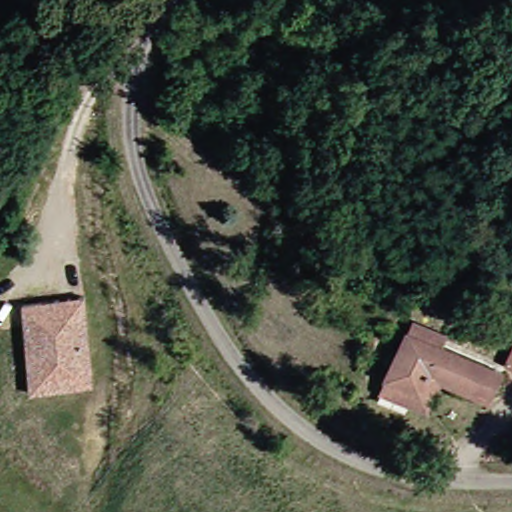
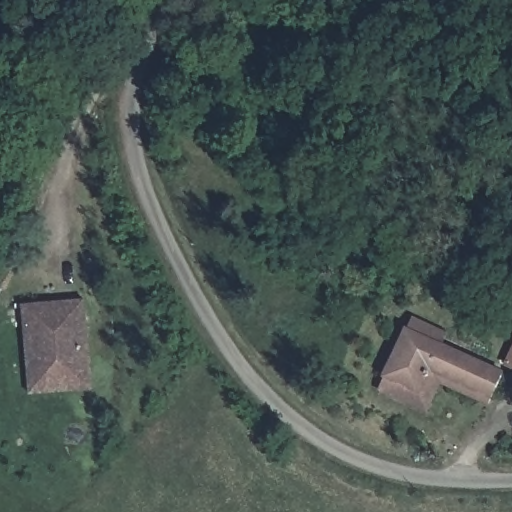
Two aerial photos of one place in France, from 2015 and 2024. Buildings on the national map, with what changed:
unchanged [(90,390),(30,395),(23,305),(83,296),(90,390)]
unchanged [(423,313),(457,328),(452,340),(512,370),(512,386),(508,393),(446,367),(435,389),(398,371),(418,327),(423,313)]
unchanged [(435,389),(446,367),(508,393),(502,404),(460,387),(444,419),(388,394),(398,371),(435,389)]

